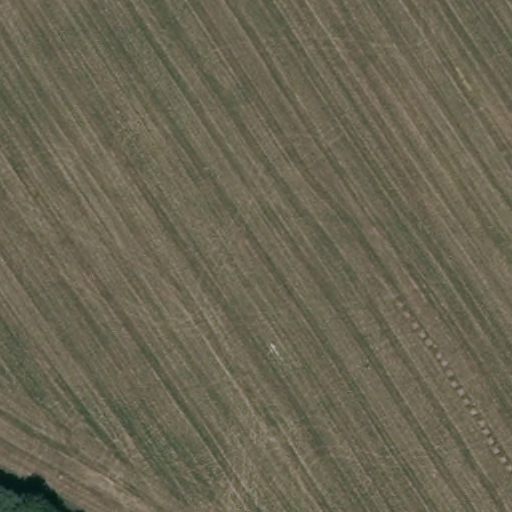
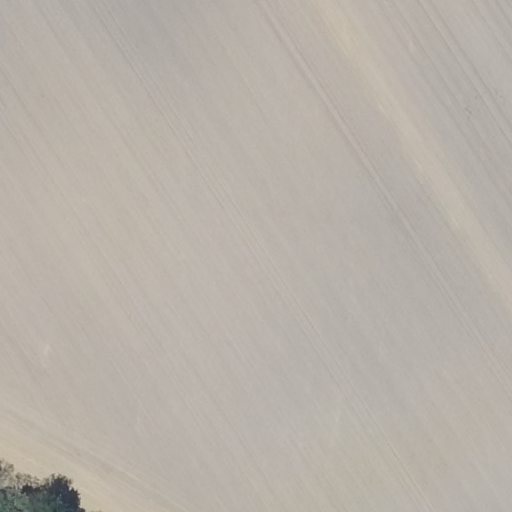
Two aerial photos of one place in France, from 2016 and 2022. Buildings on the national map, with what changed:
[]

